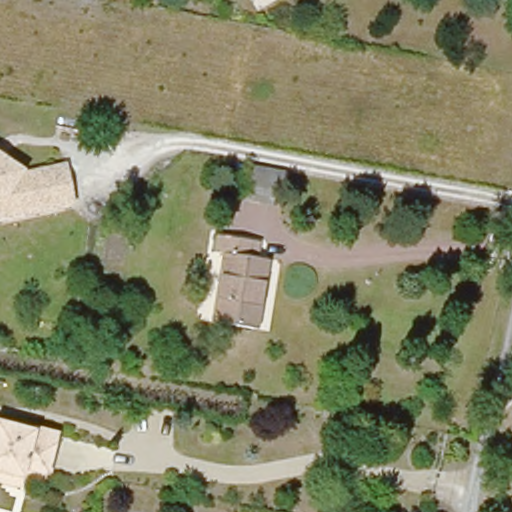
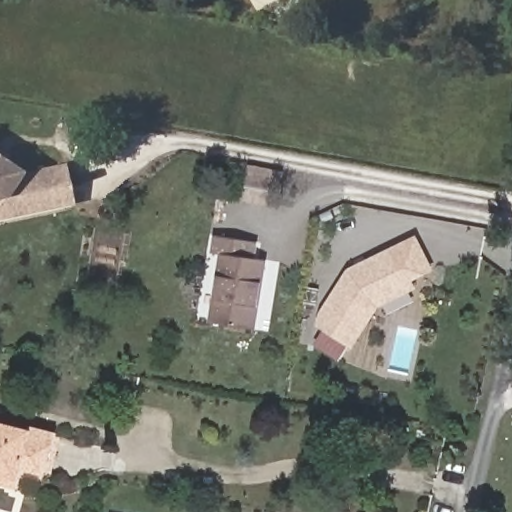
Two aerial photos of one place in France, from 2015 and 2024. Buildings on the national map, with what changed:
unchanged [(0,155),(0,153),(1,154),(0,155)]
unchanged [(17,173),(59,165),(66,201),(2,213),(0,213),(0,159),(17,171),(17,173)]
unchanged [(281,202),(280,205),(240,198),(245,170),(272,175),(285,177),(281,202)]
new [(330,330),(323,326),(326,316),(353,272),(421,238),(437,270),(416,280),(420,288),(384,308),(359,348),(357,347),(348,362),(321,345),(330,330)]
unchanged [(216,257),(219,240),(257,246),(256,265),(267,266),(256,333),(212,326),(224,258),(216,257)]
unchanged [(37,418),(62,424),(51,465),(27,459),(25,470),(22,479),(0,473),(0,412),(36,421),(37,418)]

